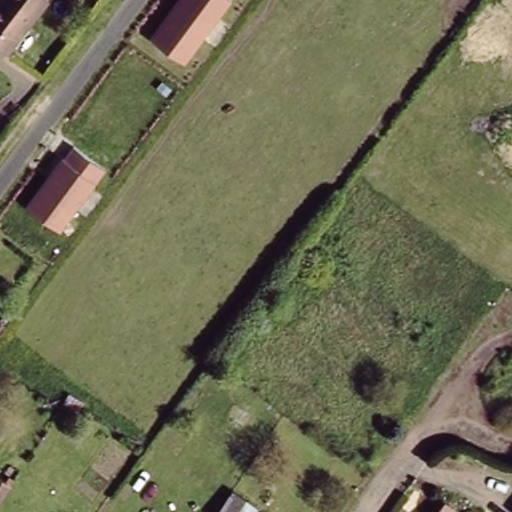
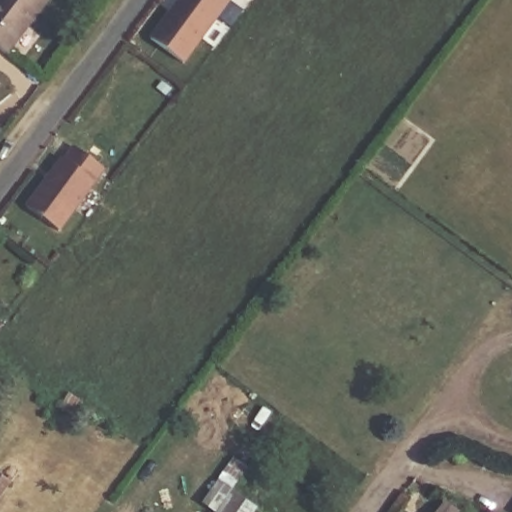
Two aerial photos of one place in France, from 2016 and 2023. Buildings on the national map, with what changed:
unchanged [(0,50),(0,0),(47,0),(48,1),(6,55),(0,50)]
unchanged [(187,64),(151,36),(176,0),(233,0),(187,64)]
unchanged [(72,147),(103,172),(60,235),(25,209),(72,147)]
unchanged [(9,485),(0,496),(0,479),(9,485)]
unchanged [(242,512),(220,512),(234,493),(248,503),(242,512)]
unchanged [(438,512),(444,504),(454,512),(438,512)]

